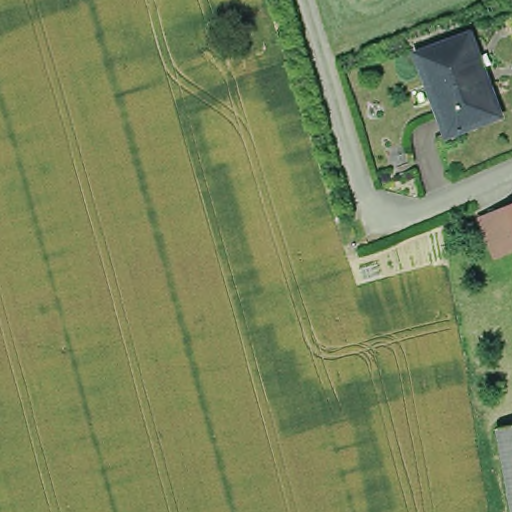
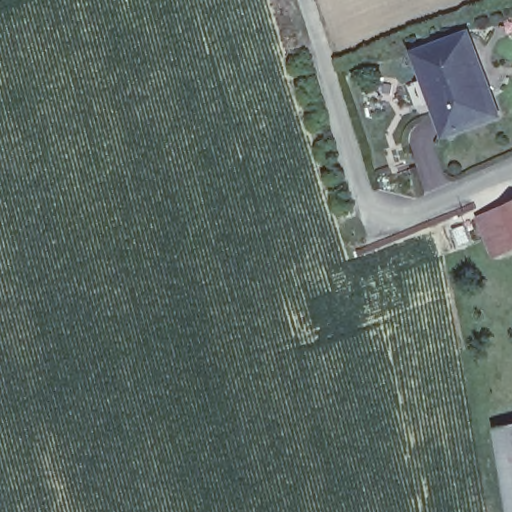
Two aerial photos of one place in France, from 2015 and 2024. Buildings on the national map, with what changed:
unchanged [(475,43),(506,120),(455,141),(423,64),(475,43)]
unchanged [(512,201),(512,251),(494,258),(480,213),(512,201)]
unchanged [(512,433),(512,501),(500,436),(512,433)]

